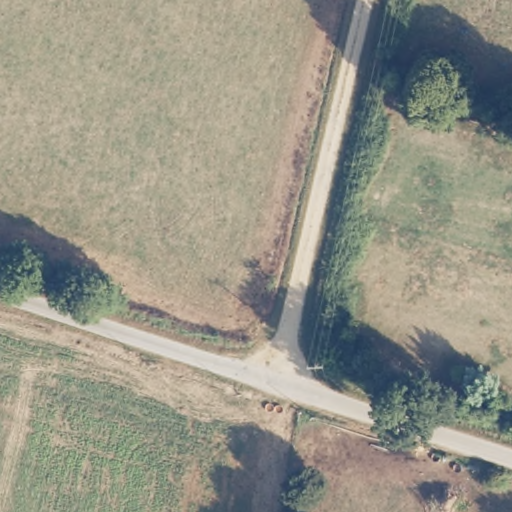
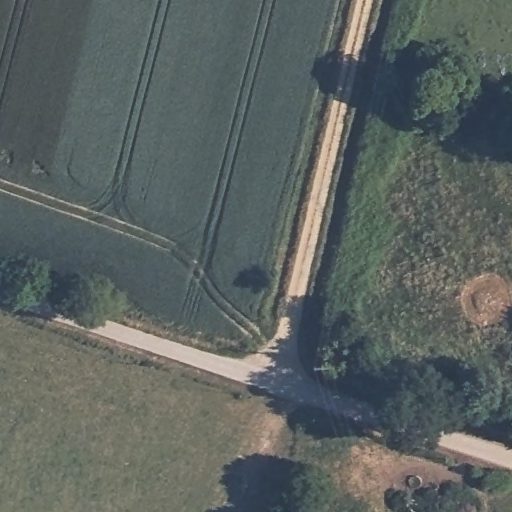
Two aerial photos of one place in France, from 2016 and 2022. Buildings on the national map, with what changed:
unchanged [(489,467),(503,472),(502,479),(500,487),(483,480),(486,472),(489,467)]

